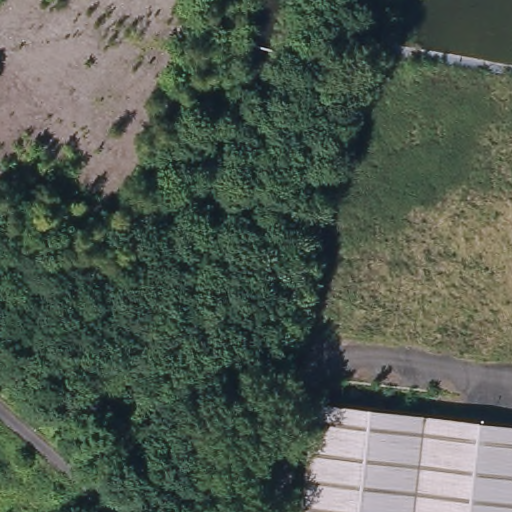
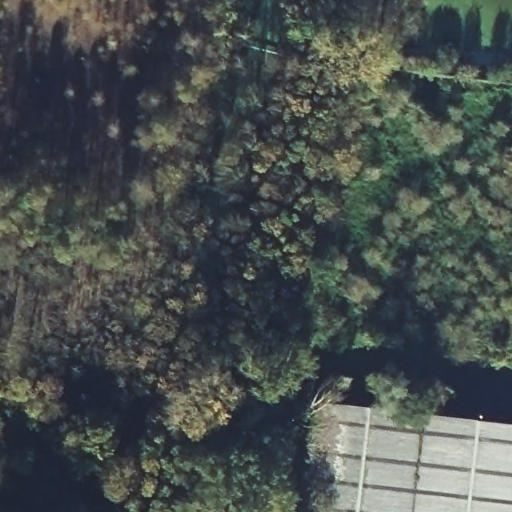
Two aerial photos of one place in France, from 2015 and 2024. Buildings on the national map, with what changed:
unchanged [(512,427),(512,512),(299,512),(312,401),(512,427)]

